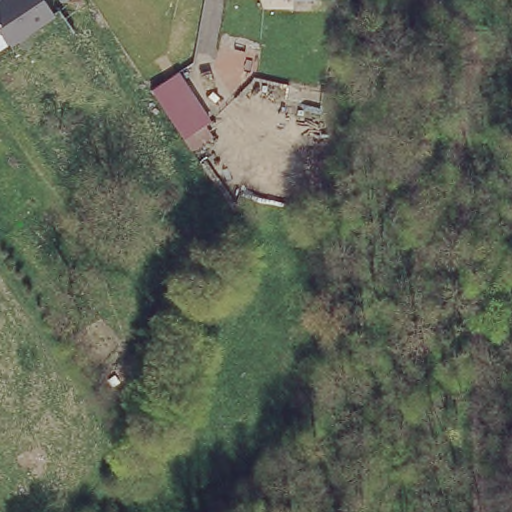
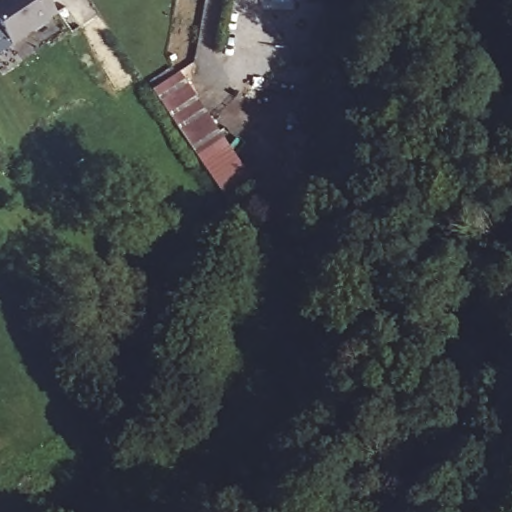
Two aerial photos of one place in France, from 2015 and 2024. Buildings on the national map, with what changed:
unchanged [(0,53),(0,0),(44,0),(55,16),(0,53)]
unchanged [(210,120),(205,124),(212,137),(190,150),(184,139),(152,89),(180,71),(210,120)]
new [(249,179),(222,198),(190,150),(212,137),(205,124),(210,120),(249,179)]

